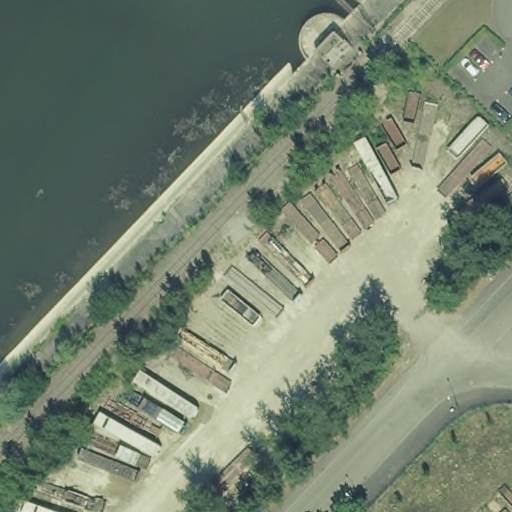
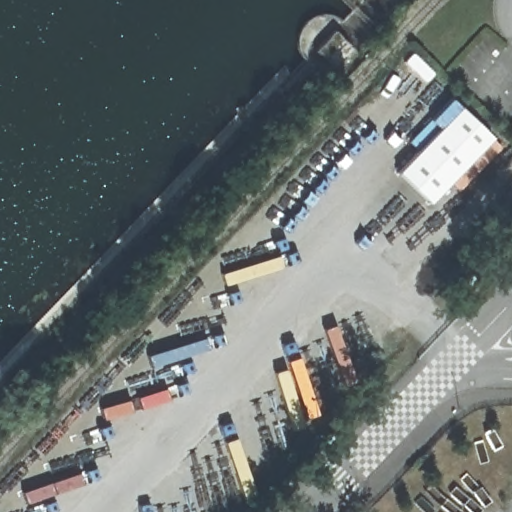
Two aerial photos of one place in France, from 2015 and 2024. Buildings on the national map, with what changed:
new [(334,30),(354,50),(334,70),(315,52),(334,30)]
new [(459,107),(492,139),(429,204),(397,172),(459,107)]

